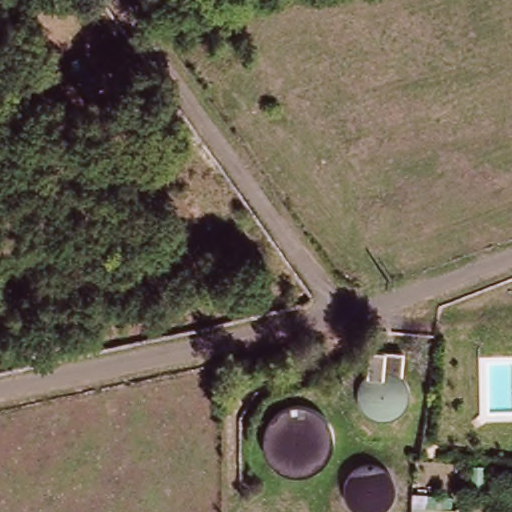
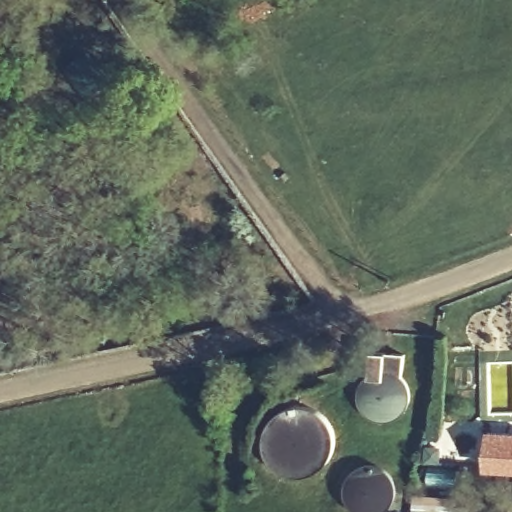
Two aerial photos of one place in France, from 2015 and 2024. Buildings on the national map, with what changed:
new [(488,430),(512,432),(512,471),(484,469),(488,430)]
unchanged [(423,493),(452,495),(452,507),(465,507),(465,512),(421,512),(423,493)]

